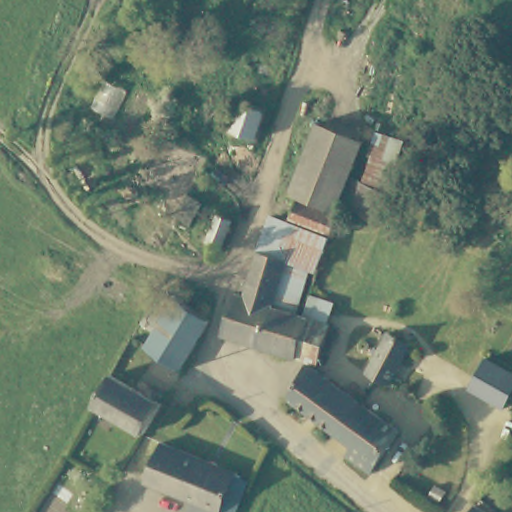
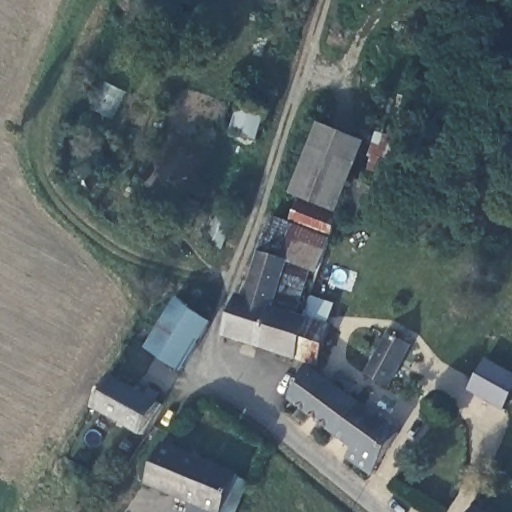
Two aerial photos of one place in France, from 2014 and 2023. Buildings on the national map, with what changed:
unchanged [(273,116),(261,144),(236,133),(249,104),(273,116)]
unchanged [(303,204),(285,196),(316,124),(369,144),(342,219),(303,204)]
unchanged [(369,144),(376,127),(411,141),(375,231),(342,219),(369,144)]
unchanged [(342,219),(340,227),(333,243),(293,228),(303,204),(342,219)]
unchanged [(207,240),(220,214),(239,222),(226,247),(207,240)]
unchanged [(320,370),(316,368),(227,336),(239,298),(250,302),(263,258),(276,221),(293,228),(333,243),(311,300),(332,307),(326,327),(331,328),(320,370)]
unchanged [(161,363),(140,350),(168,302),(199,321),(200,327),(176,372),(161,363)]
unchanged [(416,347),(393,384),(372,371),(389,341),(391,337),(392,333),(416,347)]
unchanged [(512,368),(512,383),(502,402),(467,384),(483,353),(512,368)]
unchanged [(347,462),(353,451),(292,406),(312,374),(402,436),(373,481),(347,462)]
unchanged [(148,444),(98,413),(115,386),(149,406),(154,398),(162,403),(157,411),(164,415),(148,444)]
unchanged [(173,435),(246,473),(227,511),(224,510),(223,512),(190,512),(187,510),(191,503),(196,495),(153,473),(173,435)]
unchanged [(488,512),(473,512),(477,506),(488,512)]

